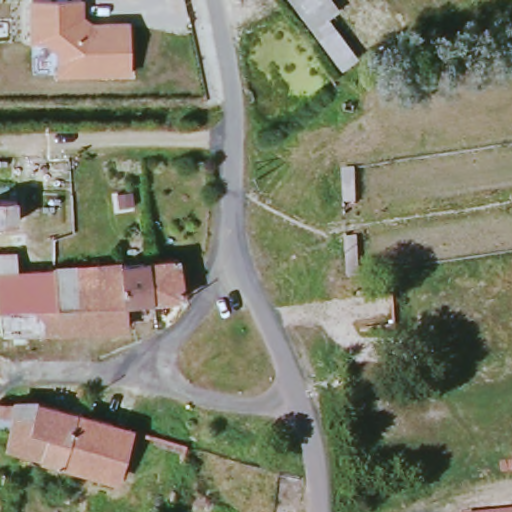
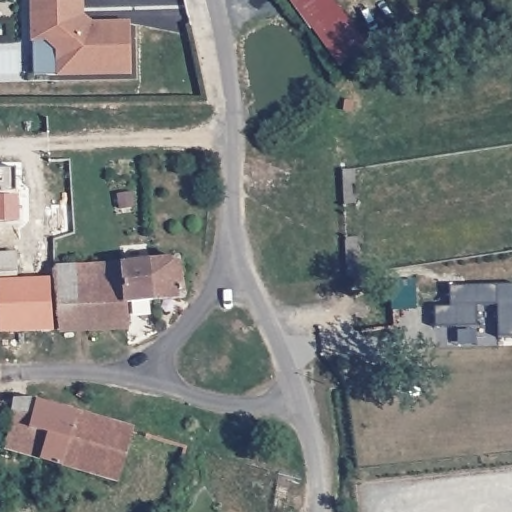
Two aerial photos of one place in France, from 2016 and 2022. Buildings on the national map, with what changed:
unchanged [(85,18),(96,25),(132,24),(133,77),(58,79),(58,55),(42,44),(30,42),(30,3),(86,0),(85,18)]
unchanged [(338,57),(296,0),(317,0),(352,46),(338,57)]
unchanged [(17,218),(0,219),(0,174),(17,169),(17,194),(17,218)]
unchanged [(0,332),(0,254),(17,254),(19,273),(59,270),(62,330),(0,332)]
unchanged [(179,259),(186,297),(154,300),(150,261),(179,259)]
unchanged [(154,300),(127,303),(122,265),(150,261),(154,300)]
unchanged [(122,265),(127,303),(129,327),(62,330),(59,270),(122,265)]
new [(499,336),(497,305),(476,305),(477,324),(436,326),(435,307),(452,306),(450,289),(512,285),(512,336),(499,336)]
unchanged [(41,459),(7,448),(10,427),(0,427),(0,402),(15,402),(37,402),(113,425),(99,475),(63,465),(41,459)]
unchanged [(133,430),(118,480),(99,475),(113,425),(133,430)]

